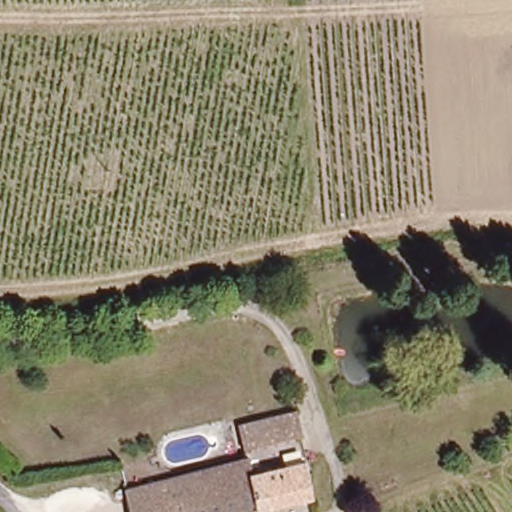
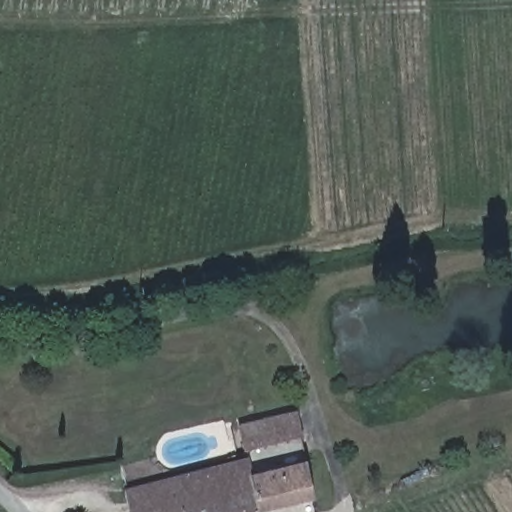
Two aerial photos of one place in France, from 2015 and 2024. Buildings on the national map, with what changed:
unchanged [(243,460),(232,425),(262,418),(289,411),(295,435),(312,499),(254,512),(250,496),(238,462),(243,460)]
unchanged [(219,507),(219,505),(188,512),(165,512),(157,483),(238,462),(250,496),(219,507)]
unchanged [(125,489),(157,480),(157,483),(165,512),(127,512),(122,490),(125,489)]
unchanged [(254,512),(221,512),(219,507),(250,496),(254,512)]
unchanged [(219,507),(220,512),(188,512),(219,505),(219,507)]

